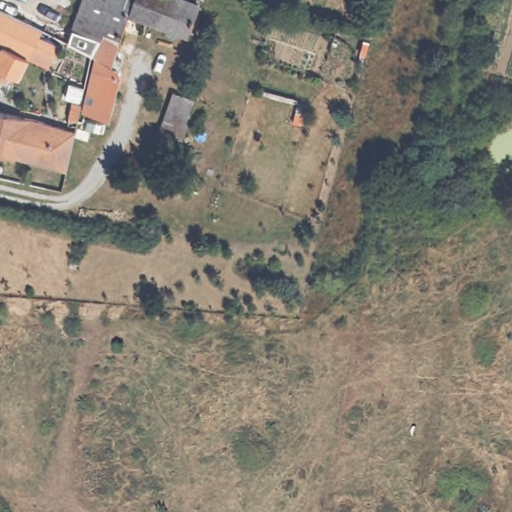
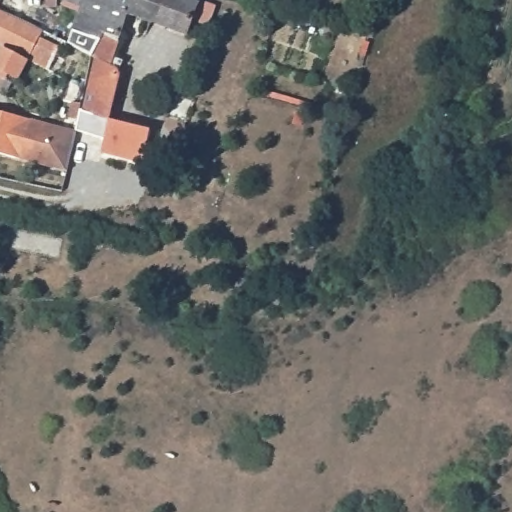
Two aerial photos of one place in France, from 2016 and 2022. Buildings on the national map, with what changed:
unchanged [(120,70),(121,75),(110,119),(83,112),(95,58),(92,54),(69,42),(73,29),(83,0),(133,0),(129,13),(120,42),(115,58),(122,61),(120,70)]
unchanged [(187,35),(129,13),(133,0),(191,0),(200,3),(187,35)]
unchanged [(19,80),(0,70),(0,53),(3,46),(0,45),(0,8),(44,29),(29,58),(19,80)]
new [(110,119),(151,129),(142,163),(101,152),(104,138),(76,130),(80,110),(83,112),(110,119)]
unchanged [(76,130),(68,170),(0,153),(0,111),(76,130)]

